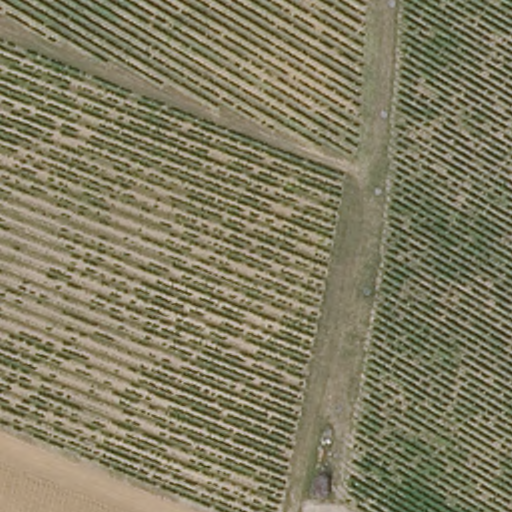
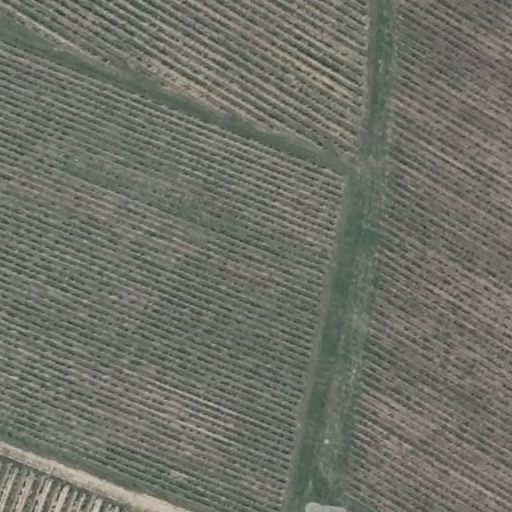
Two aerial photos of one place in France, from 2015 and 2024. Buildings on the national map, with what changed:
[]

